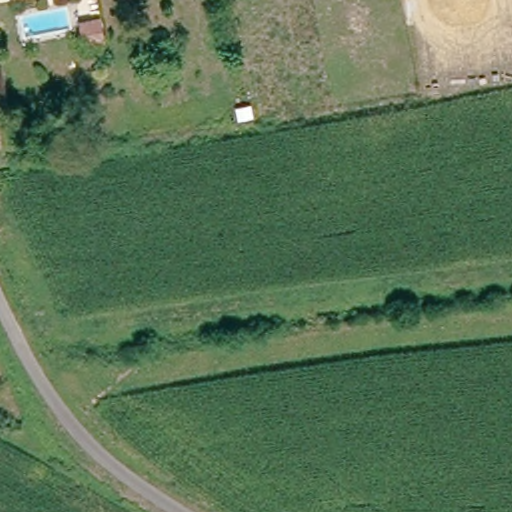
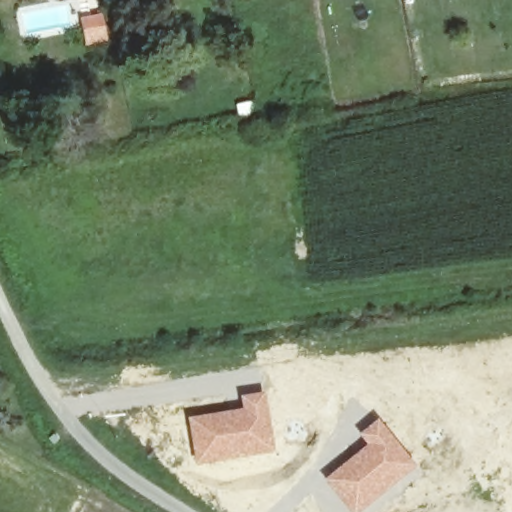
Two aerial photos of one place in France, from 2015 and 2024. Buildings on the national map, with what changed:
unchanged [(103,57),(81,61),(77,38),(99,34),(103,57)]
unchanged [(0,54),(0,40),(2,54),(0,54)]
new [(242,409),(240,396),(266,392),(276,453),(195,466),(187,417),(242,409)]
new [(359,435),(379,419),(418,468),(362,512),(348,512),(323,480),(367,445),(359,435)]

